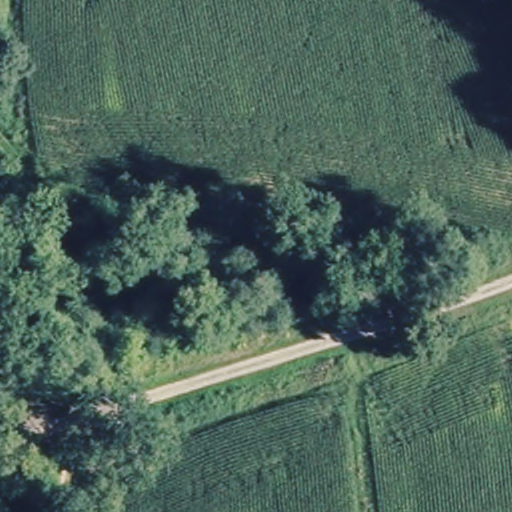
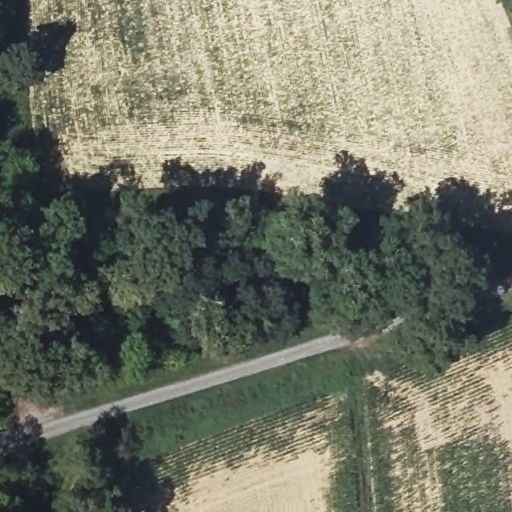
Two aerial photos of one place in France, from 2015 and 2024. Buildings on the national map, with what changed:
[]

